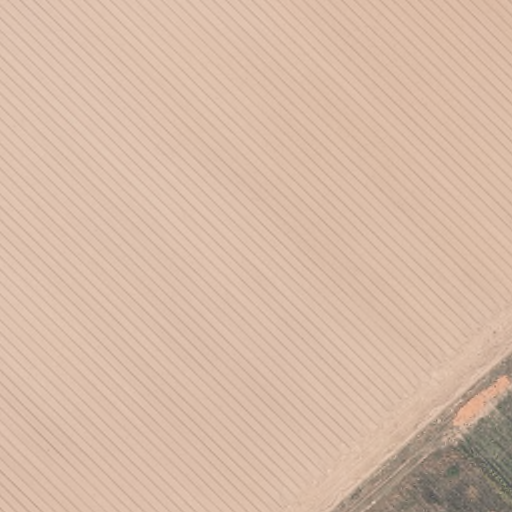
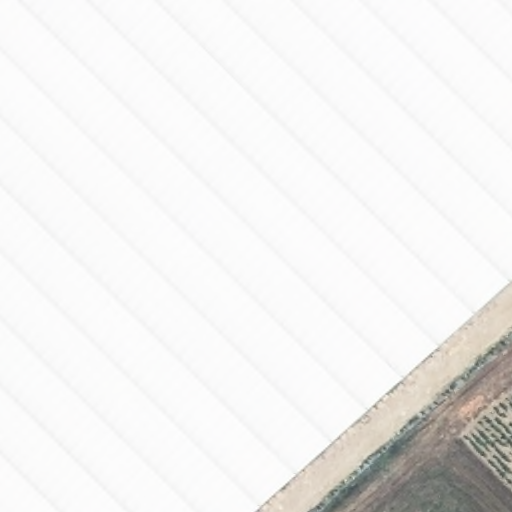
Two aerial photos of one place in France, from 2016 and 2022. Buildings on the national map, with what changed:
new [(512,279),(253,512),(0,512),(0,0),(512,0),(512,279)]

